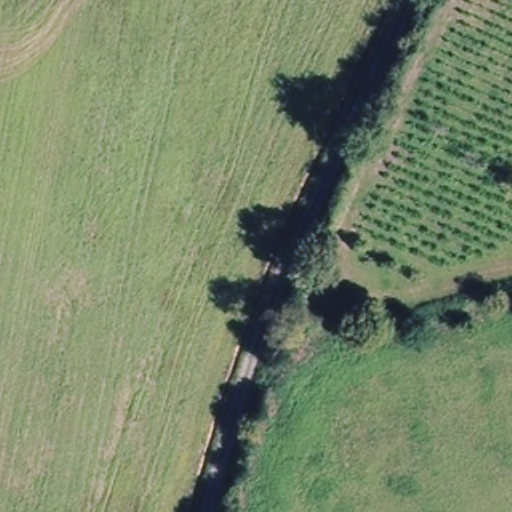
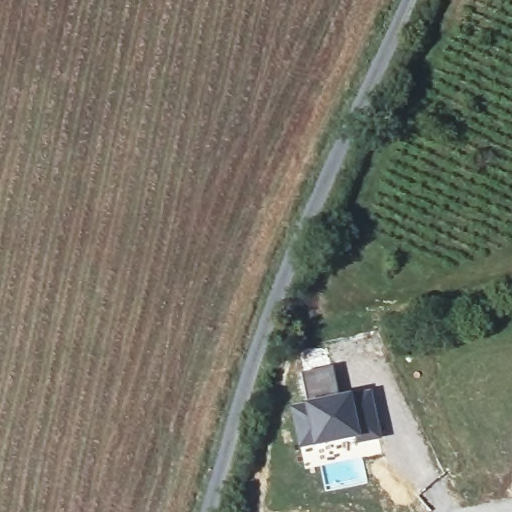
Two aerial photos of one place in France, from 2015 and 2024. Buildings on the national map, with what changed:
new [(333,363),(340,394),(307,402),(300,371),(333,363)]
new [(307,402),(340,394),(372,386),(382,436),(298,449),(290,408),(307,402)]

